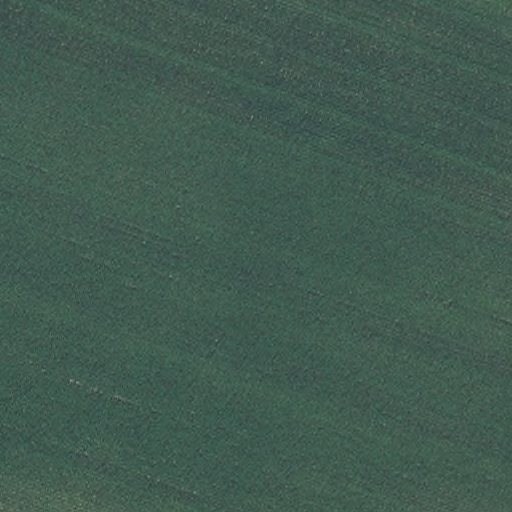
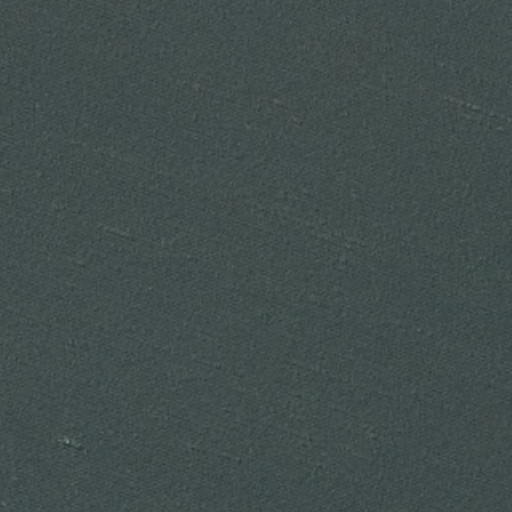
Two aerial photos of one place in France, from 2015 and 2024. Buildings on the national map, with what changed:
[]

